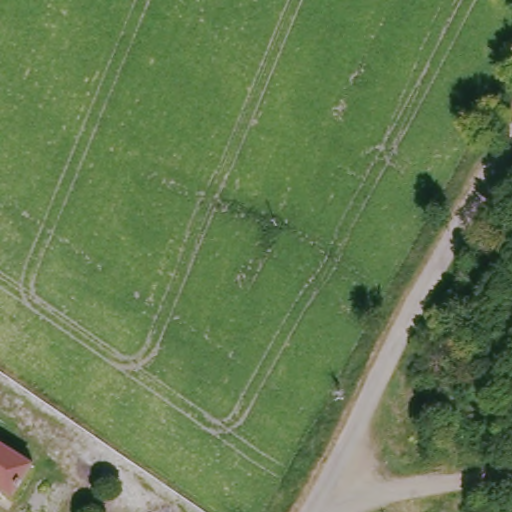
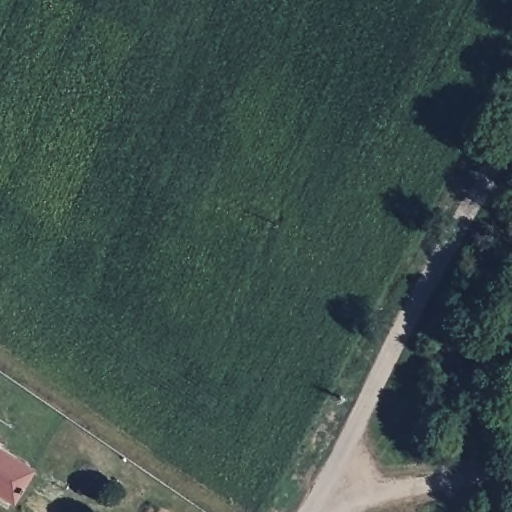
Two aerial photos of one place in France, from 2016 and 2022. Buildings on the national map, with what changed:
unchanged [(8,498),(0,493),(0,447),(28,464),(8,498)]

